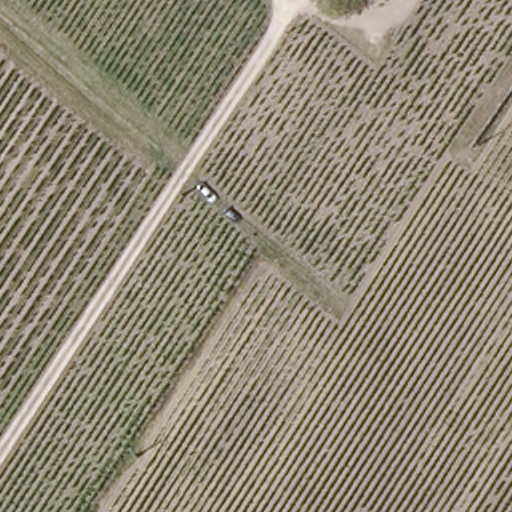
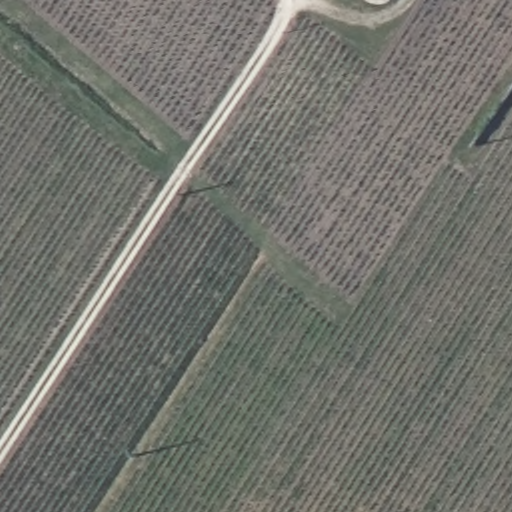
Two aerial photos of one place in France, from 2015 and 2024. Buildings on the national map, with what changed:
unchanged [(390,2),(387,0),(392,0),(390,2)]

